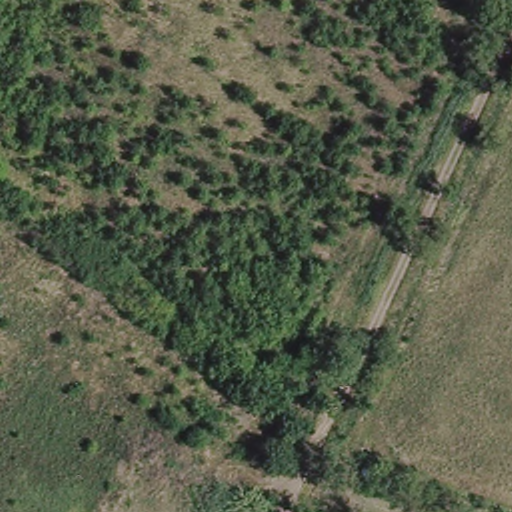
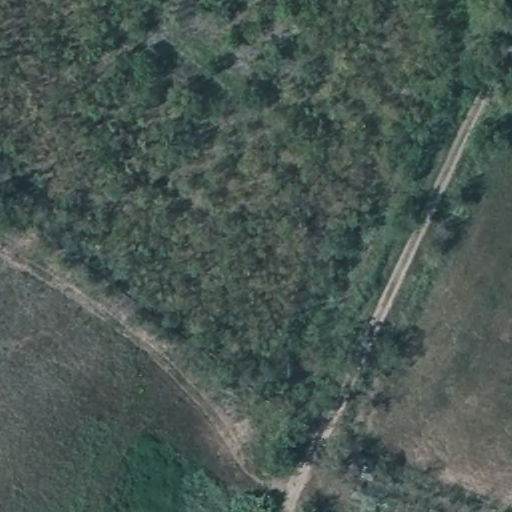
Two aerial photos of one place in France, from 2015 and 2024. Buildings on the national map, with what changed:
unchanged [(362,475),(367,462),(378,466),(375,480),(362,475)]

